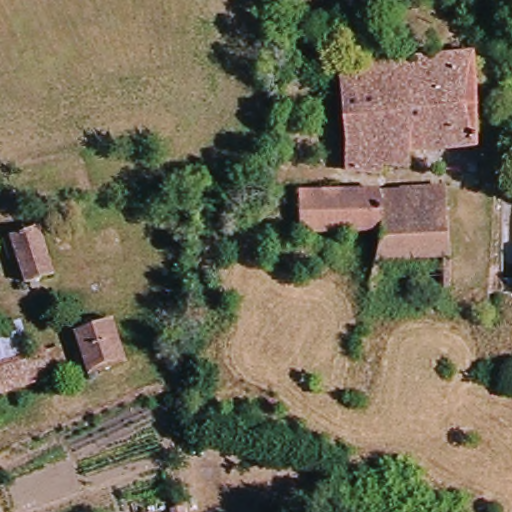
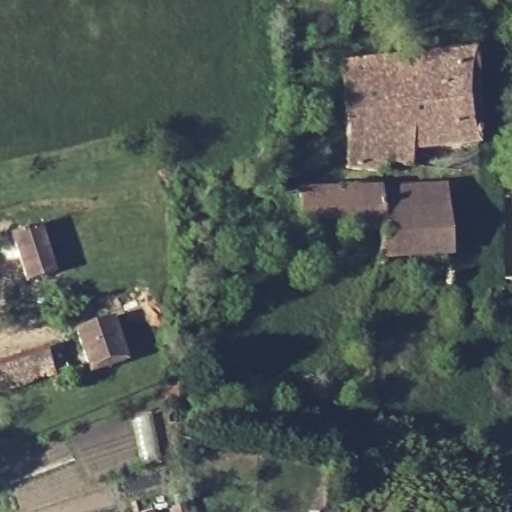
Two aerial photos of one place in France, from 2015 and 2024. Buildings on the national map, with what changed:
unchanged [(462,43),(472,43),(479,148),(425,151),(426,171),(414,171),(413,163),(382,160),(380,171),(343,166),(338,66),(463,56),(462,43)]
unchanged [(444,292),(366,293),(372,236),(293,233),(293,198),(376,196),(400,195),(442,194),(444,292)]
unchanged [(7,238),(37,228),(54,275),(24,285),(7,238)]
unchanged [(19,321),(26,354),(42,349),(52,381),(0,396),(0,325),(19,321)]
unchanged [(106,325),(121,364),(85,376),(71,335),(106,325)]

